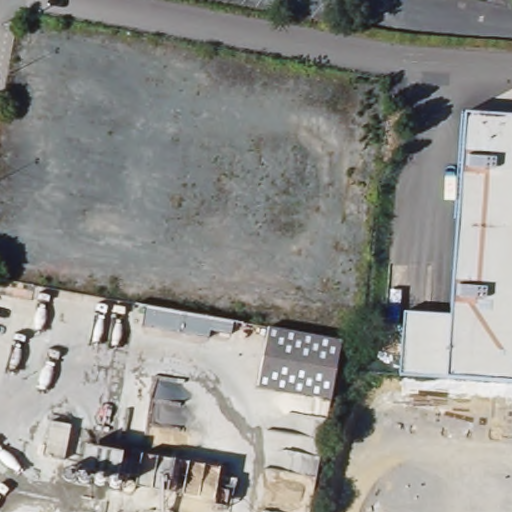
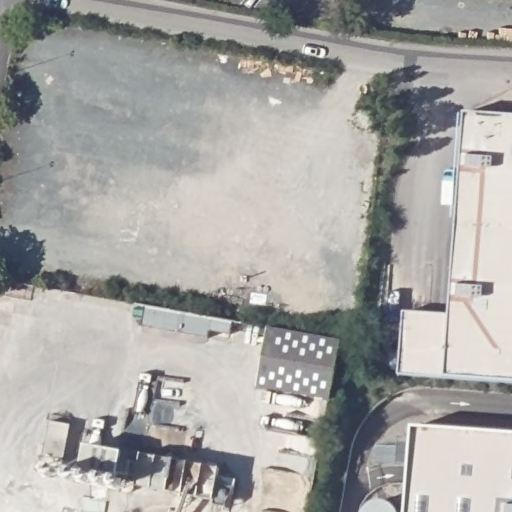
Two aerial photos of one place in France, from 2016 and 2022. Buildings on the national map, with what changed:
unchanged [(447,375),(399,372),(404,311),(448,315),(463,111),(512,115),(512,380),(447,375)]
unchanged [(265,330),(340,345),(329,403),(255,387),(265,330)]
unchanged [(133,378),(157,383),(145,446),(121,441),(133,378)]
unchanged [(52,421),(64,423),(57,456),(45,453),(52,421)]
new [(370,502),(383,500),(407,502),(412,426),(512,433),(512,512),(362,512),(370,502)]
unchanged [(119,450),(121,441),(145,446),(142,455),(216,467),(215,498),(86,481),(90,447),(119,450)]

